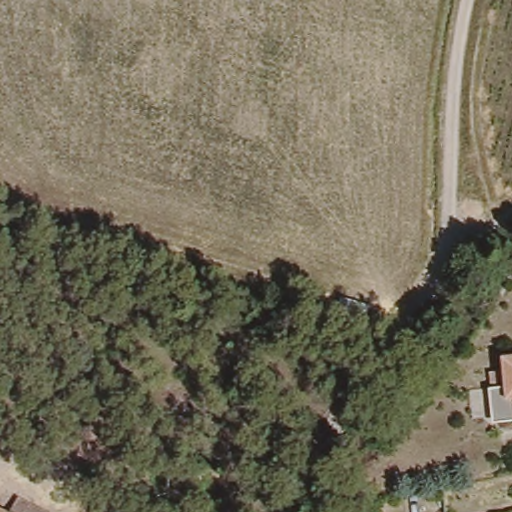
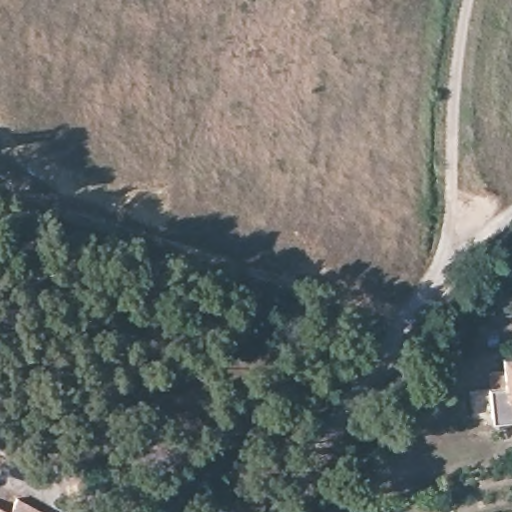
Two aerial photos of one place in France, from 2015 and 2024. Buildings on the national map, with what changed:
unchanged [(492,419),(489,386),(506,384),(504,356),(512,356),(512,418),(492,419)]
unchanged [(51,512),(25,512),(30,500),(51,512)]
unchanged [(0,512),(0,510),(5,512),(0,512)]

